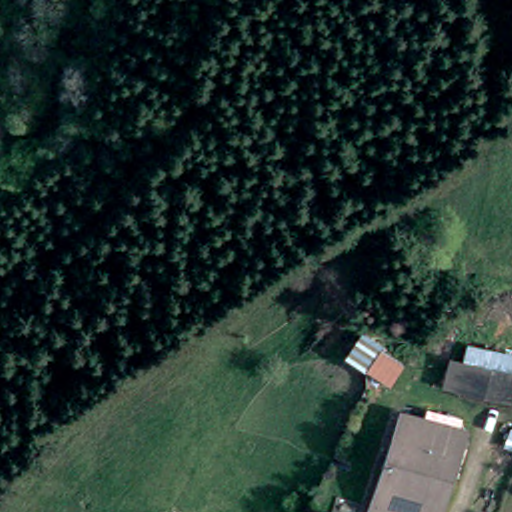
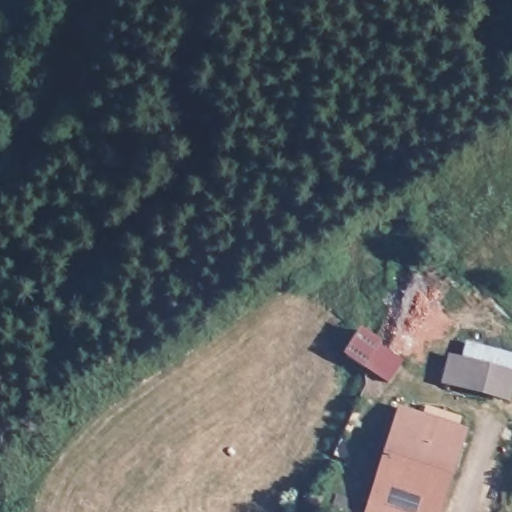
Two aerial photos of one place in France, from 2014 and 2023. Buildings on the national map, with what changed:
new [(389,383),(365,367),(347,355),(364,331),(381,343),(380,345),(404,361),(389,383)]
unchanged [(507,397),(443,381),(449,358),(512,374),(512,376),(507,397)]
unchanged [(460,437),(436,512),(364,512),(366,506),(396,416),(460,437)]

